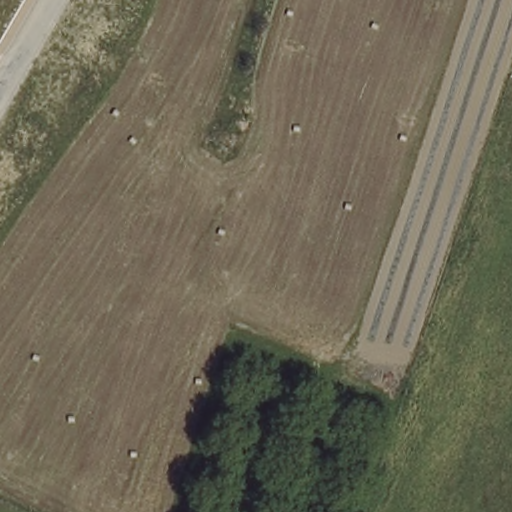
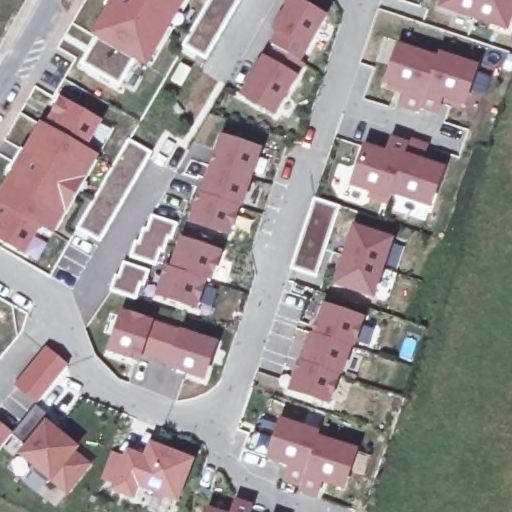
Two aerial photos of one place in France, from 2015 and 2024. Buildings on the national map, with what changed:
new [(156,44),(144,64),(136,59),(120,87),(82,65),(98,37),(93,34),(108,8),(104,5),(107,0),(181,0),(176,9),(171,7),(182,13),(163,47),(151,41),(156,44)]
new [(204,59),(181,46),(207,0),(238,0),(204,59)]
new [(261,60),(266,63),(274,49),(269,46),(278,32),(274,29),(289,0),(295,0),(323,16),(298,61),(302,64),(274,113),(241,94),(261,60)]
new [(512,30),(446,8),(448,0),(512,0),(512,30)]
new [(408,108),(413,92),(391,85),(404,48),(442,60),(424,114),(408,108)]
new [(482,68),(469,106),(448,98),(442,114),(426,109),(444,56),(482,68)]
new [(104,125),(88,153),(97,158),(84,178),(91,183),(71,217),(65,213),(53,234),(45,230),(30,256),(0,239),(0,222),(8,207),(4,204),(19,178),(14,175),(26,153),(30,156),(46,129),(51,132),(66,104),(104,125)]
new [(206,197),(208,197),(226,141),(263,153),(246,210),(243,209),(233,237),(196,225),(206,197)]
new [(394,205),(376,199),(377,195),(358,188),(371,149),(393,156),(397,142),(414,147),(398,195),(394,205)]
new [(415,142),(431,148),(426,163),(448,170),(436,208),(398,195),(415,142)]
new [(319,200),(346,208),(323,279),(296,270),(319,200)]
new [(398,242),(388,271),(350,258),(359,230),(398,242)]
new [(173,271),(178,272),(188,243),(224,256),(216,284),(211,282),(201,310),(163,299),(173,271)]
new [(350,258),(388,271),(379,299),(341,287),(350,258)]
new [(331,309),(368,322),(359,350),(321,337),(331,309)]
new [(162,361),(147,356),(144,364),(116,354),(128,317),(172,331),(162,361)]
new [(172,331),(215,346),(203,384),(174,374),(177,366),(162,361),(172,331)]
new [(319,337),(356,349),(346,378),(309,365),(319,337)]
new [(51,353),(73,370),(44,406),(23,389),(51,353)]
new [(306,365),(344,377),(334,406),(297,393),(306,365)]
new [(79,456),(94,469),(73,495),(58,483),(54,487),(38,474),(41,470),(28,458),(33,451),(18,439),(42,409),(58,422),(53,428),(83,452),(79,456)]
new [(326,436),(324,441),(309,489),(293,484),(296,473),(274,466),(288,423),(326,436)]
new [(18,439),(0,461),(0,424),(18,439)]
new [(309,489),(324,441),(363,453),(351,491),(329,484),(323,499),(307,494),(309,489)]
new [(134,457),(152,463),(158,449),(198,465),(183,503),(144,488),(139,500),(120,493),(134,457)]
new [(259,510),(259,512),(241,512),(243,505),(259,510)]

